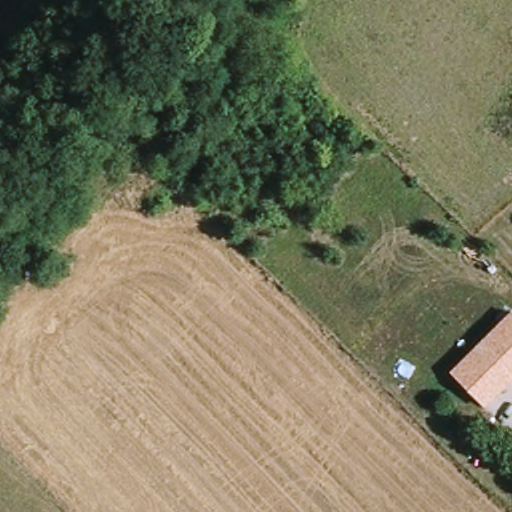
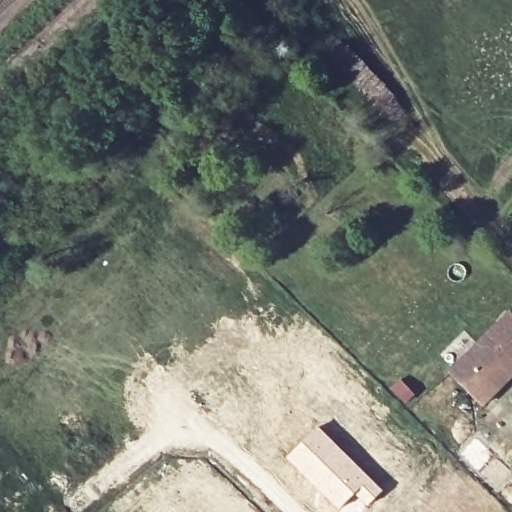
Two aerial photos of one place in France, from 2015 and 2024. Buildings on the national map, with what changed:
unchanged [(512,379),(485,406),(449,371),(509,309),(512,311),(512,379)]
new [(318,425),(384,490),(367,507),(354,495),(339,510),(285,458),(318,425)]

